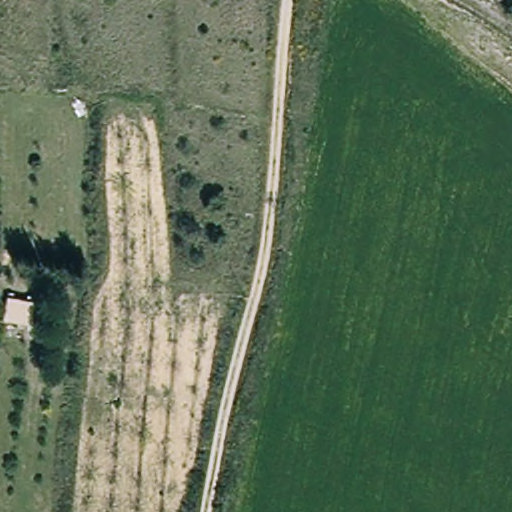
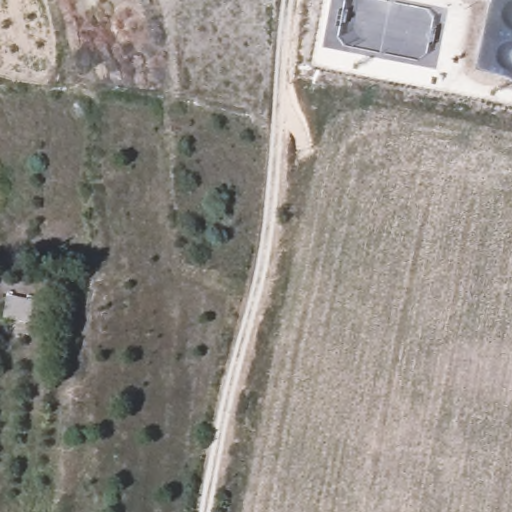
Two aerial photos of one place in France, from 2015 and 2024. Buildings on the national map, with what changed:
unchanged [(9,298),(33,308),(27,327),(45,330),(41,345),(3,337),(9,298)]

